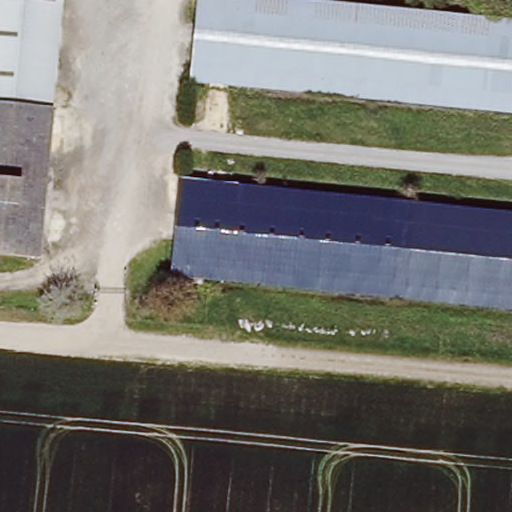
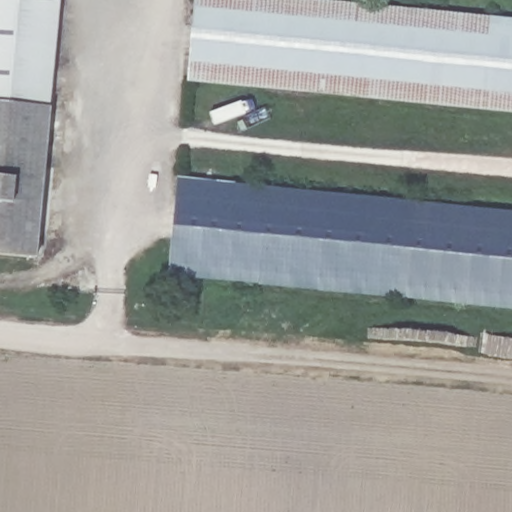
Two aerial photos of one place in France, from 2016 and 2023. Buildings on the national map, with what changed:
unchanged [(41,255),(0,251),(0,0),(66,0),(41,255)]
unchanged [(201,0),(329,0),(512,17),(512,110),(193,80),(201,0)]
unchanged [(512,303),(174,270),(183,179),(512,210),(512,303)]

